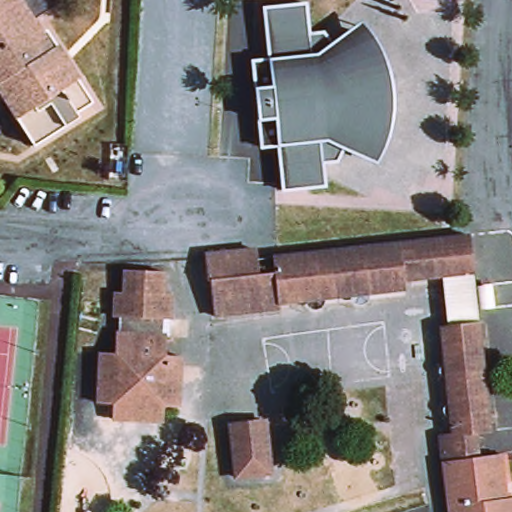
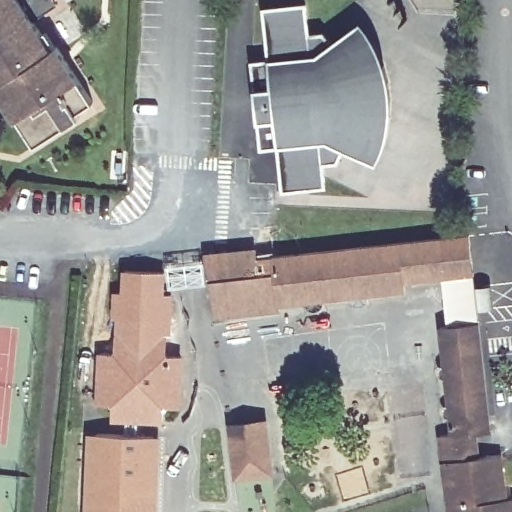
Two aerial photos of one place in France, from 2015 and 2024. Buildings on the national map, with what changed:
unchanged [(52,49),(57,46),(93,103),(77,113),(80,118),(35,147),(0,93),(0,0),(20,0),(52,49)]
unchanged [(389,77),(391,95),(390,112),(378,111),(376,125),(371,139),(364,154),(344,144),(338,157),(323,158),(326,182),(284,186),(279,141),(262,143),(253,57),(270,55),(264,3),(297,0),(306,0),(309,29),(324,28),(332,39),(350,25),(360,38),(368,50),(373,64),(385,60),(389,77)]
unchanged [(264,310),(215,316),(211,280),(208,280),(205,255),(257,250),(259,274),(275,272),(273,257),(461,236),(469,235),(474,273),(443,277),(404,281),(405,290),(281,305),(281,308),(264,310)]
unchanged [(492,285),(495,308),(478,309),(479,322),(449,326),(443,277),(474,273),(475,287),(492,285)]
unchanged [(180,411),(167,411),(164,413),(164,426),(113,423),(114,411),(111,408),(99,408),(100,383),(98,383),(98,382),(100,382),(101,357),(113,358),(116,355),(117,339),(120,339),(121,322),(115,322),(116,298),(124,298),(125,275),(164,277),(163,300),(171,300),(170,324),(165,324),(165,341),(167,341),(167,358),(169,361),(182,361),(181,371),(181,386),(180,411)]
unchanged [(452,434),(441,327),(449,326),(479,322),(491,431),(476,433),(479,457),(463,459),(444,461),(441,435),(452,434)]
unchanged [(236,477),(231,425),(266,421),(271,473),(236,477)]
new [(160,436),(157,512),(82,512),(85,432),(160,436)]
unchanged [(479,457),(504,454),(509,497),(512,497),(512,512),(449,512),(444,461),(463,459),(479,457)]

